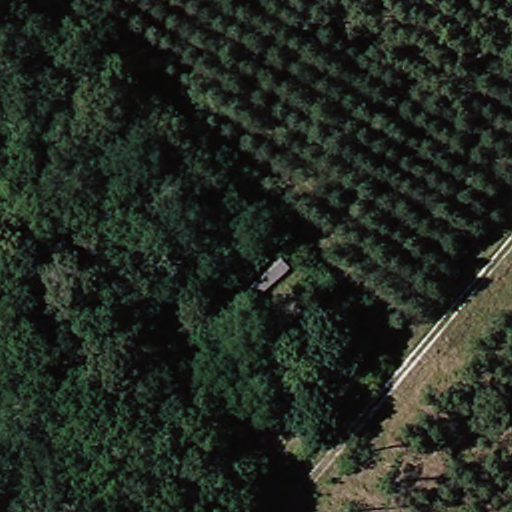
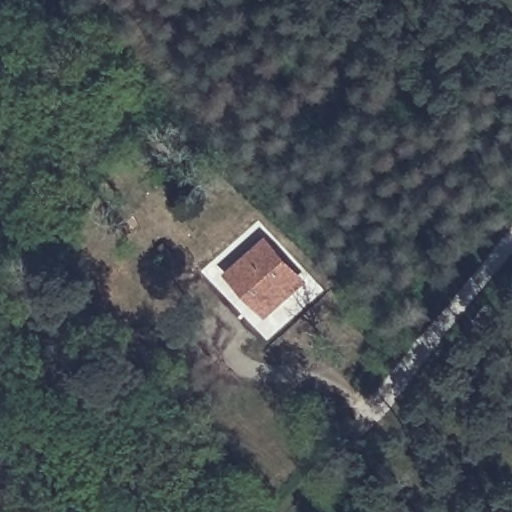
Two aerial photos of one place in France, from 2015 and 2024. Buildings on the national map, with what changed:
new [(310,282),(266,321),(224,275),(267,237),(310,282)]
demolished [(286,252),(299,263),(269,297),(256,286),(286,252)]
unchanged [(202,270),(191,282),(182,274),(187,269),(178,261),(185,255),(202,270)]

